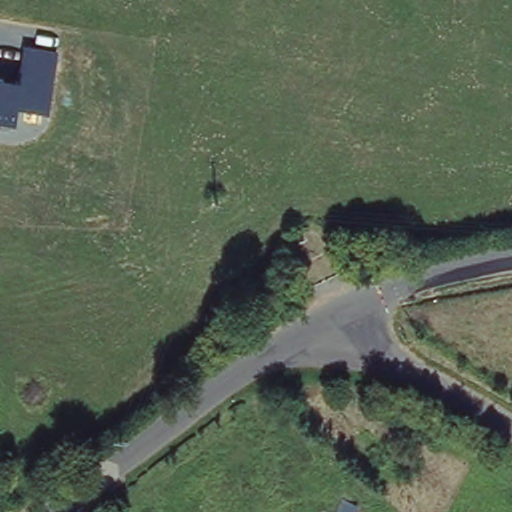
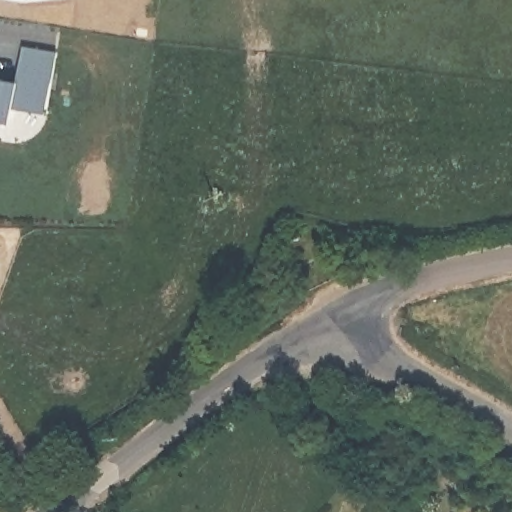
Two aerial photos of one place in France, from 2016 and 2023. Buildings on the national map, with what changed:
unchanged [(15,104),(13,123),(0,121),(0,77),(21,80),(25,42),(59,47),(49,110),(15,104)]

